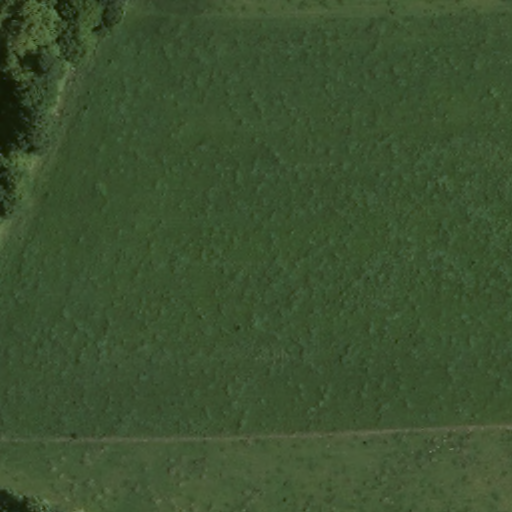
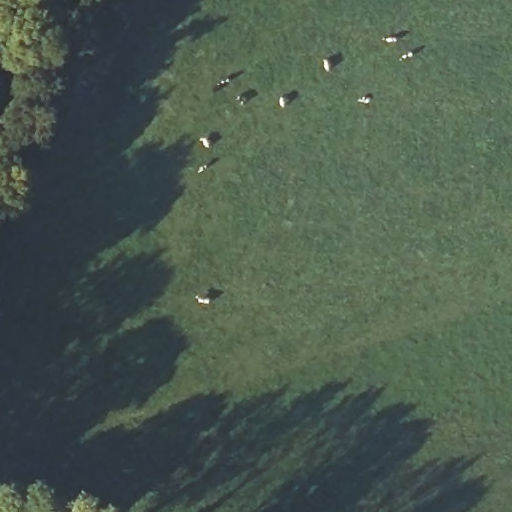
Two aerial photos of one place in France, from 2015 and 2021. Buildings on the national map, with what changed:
[]

